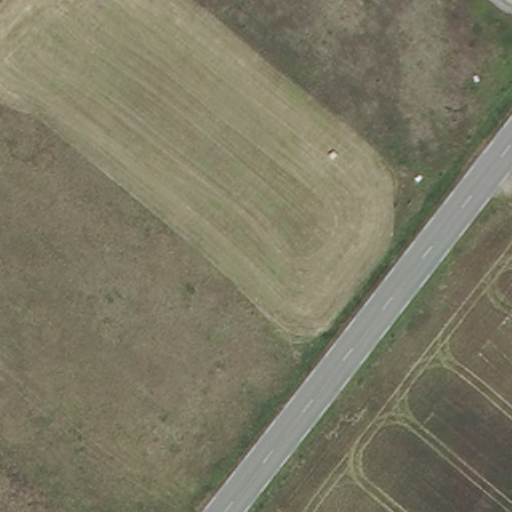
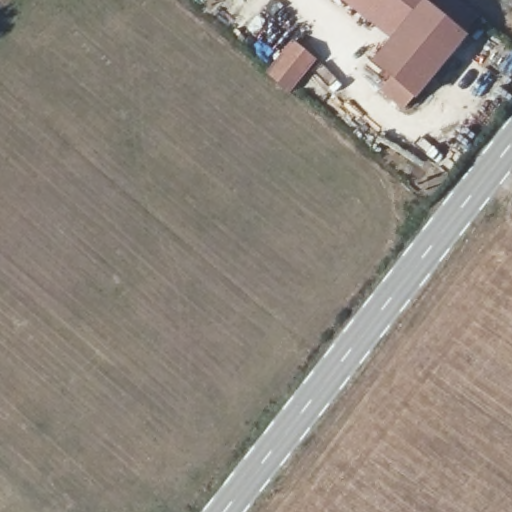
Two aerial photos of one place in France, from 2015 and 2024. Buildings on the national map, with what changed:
new [(357,12),(367,0),(422,0),(389,40),(357,12)]
new [(390,76),(371,60),(389,40),(422,0),(427,0),(469,36),(416,100),(413,97),(401,110),(379,90),(390,76)]
new [(480,20),(469,36),(427,0),(455,0),(480,20)]
new [(294,44),(316,61),(289,95),(267,76),(294,44)]

